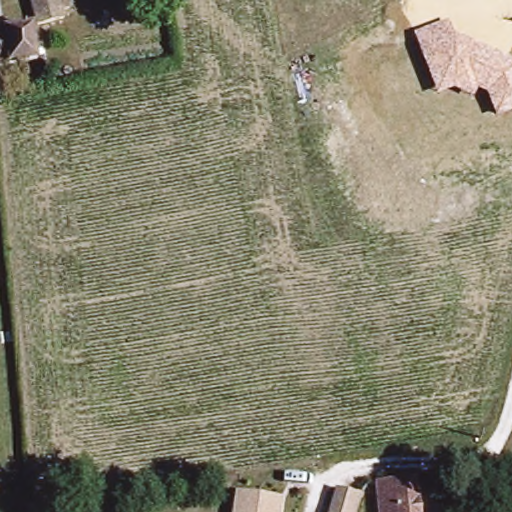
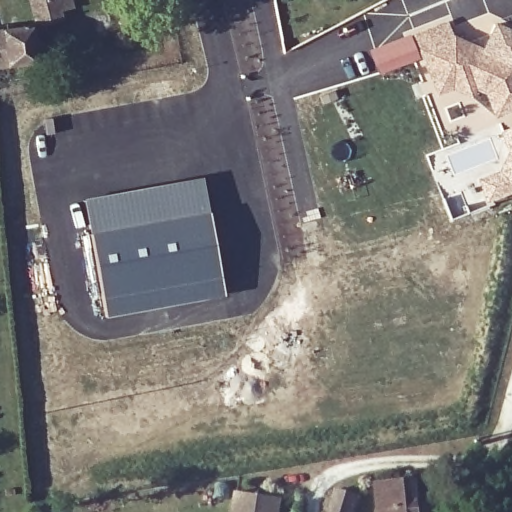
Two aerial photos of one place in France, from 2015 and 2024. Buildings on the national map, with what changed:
unchanged [(28,0),(83,0),(85,10),(31,20),(28,0)]
unchanged [(31,20),(32,55),(0,61),(0,41),(0,24),(31,20)]
unchanged [(452,35),(512,61),(512,110),(496,116),(487,95),(477,92),(473,100),(452,89),(437,95),(416,35),(447,22),(452,35)]
new [(202,176),(226,296),(103,318),(82,197),(202,176)]
unchanged [(375,481),(413,480),(416,512),(379,512),(375,481)]
unchanged [(363,494),(358,512),(329,512),(337,486),(363,494)]
unchanged [(237,491),(283,497),(281,512),(234,512),(237,491)]

